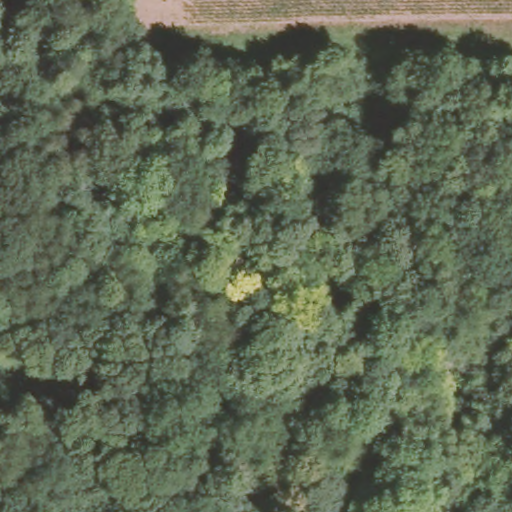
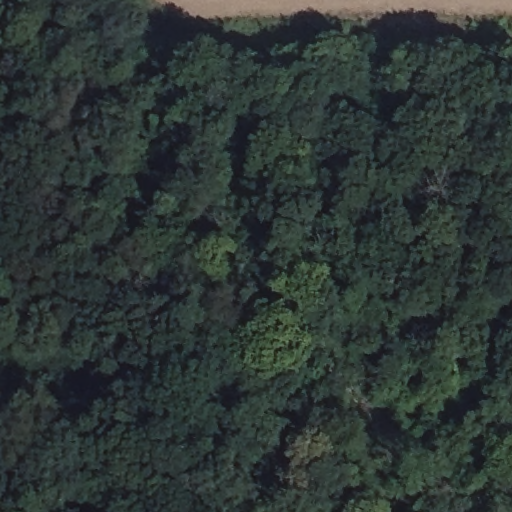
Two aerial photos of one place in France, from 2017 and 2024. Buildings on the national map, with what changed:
unchanged [(138,105),(161,105),(161,123),(140,123),(138,105)]

